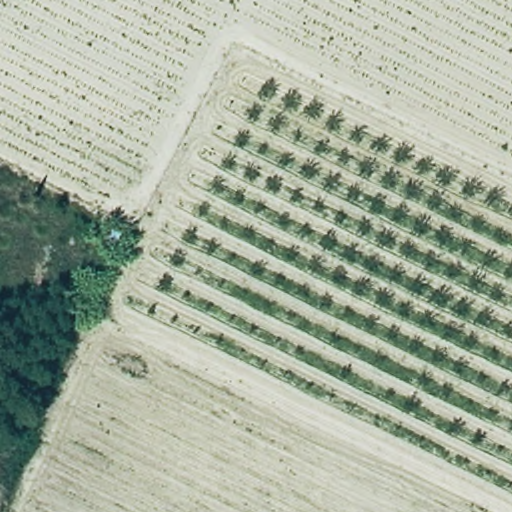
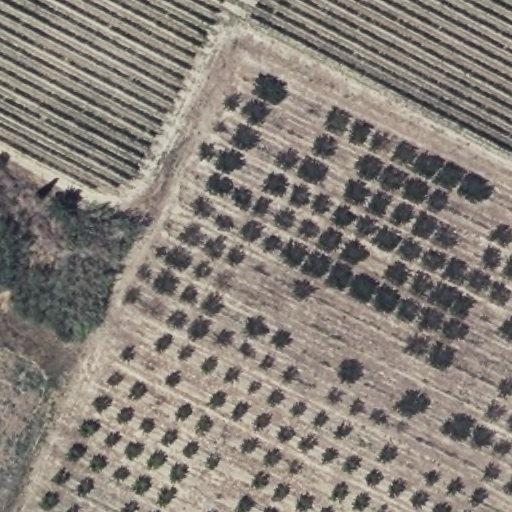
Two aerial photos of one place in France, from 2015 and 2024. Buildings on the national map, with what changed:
unchanged [(125,232),(118,247),(104,237),(113,222),(125,232)]

